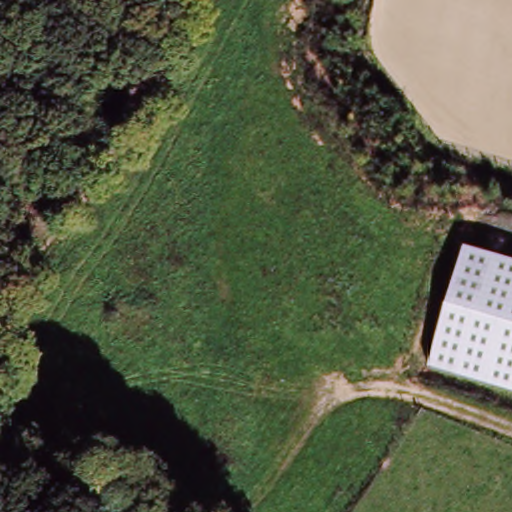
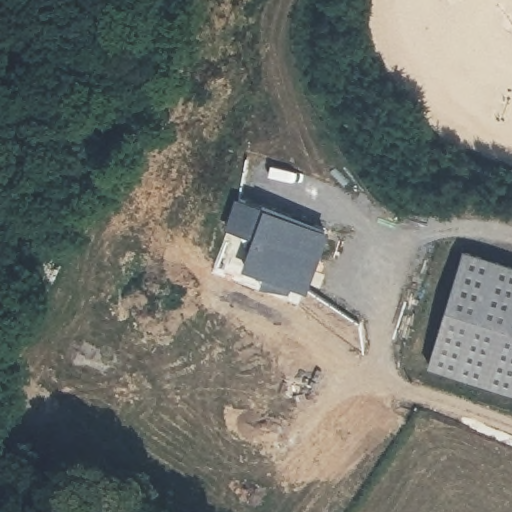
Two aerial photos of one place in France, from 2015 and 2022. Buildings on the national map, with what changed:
new [(325,231),(303,289),(216,257),(238,198),(325,231)]
unchanged [(464,248),(512,263),(512,393),(428,368),(464,248)]

